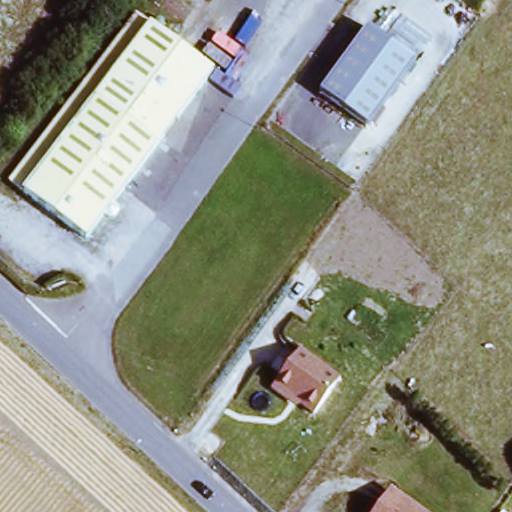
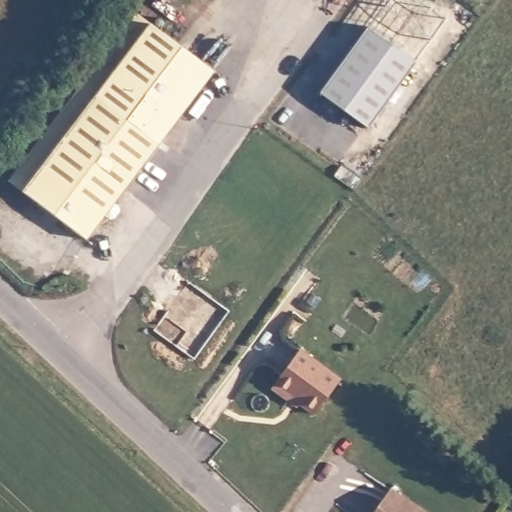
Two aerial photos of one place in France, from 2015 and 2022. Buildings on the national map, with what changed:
unchanged [(150,21),(219,70),(83,237),(20,190),(6,182),(136,10),(150,21)]
unchanged [(418,64),(367,132),(319,95),(370,26),(418,64)]
new [(187,287),(227,317),(192,365),(152,336),(187,287)]
unchanged [(341,381),(314,420),(301,411),(297,414),(271,394),(297,352),(341,381)]
unchanged [(421,512),(374,512),(390,490),(421,512)]

